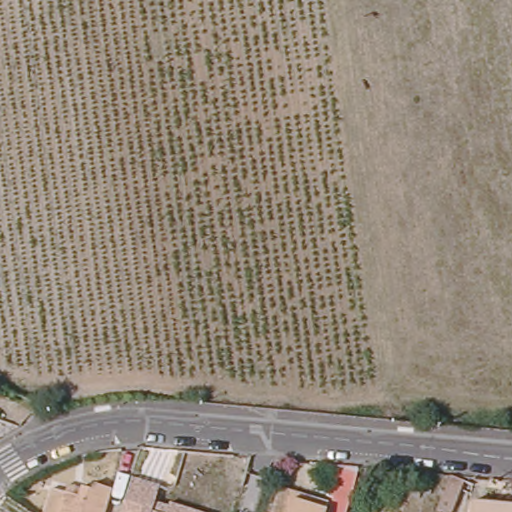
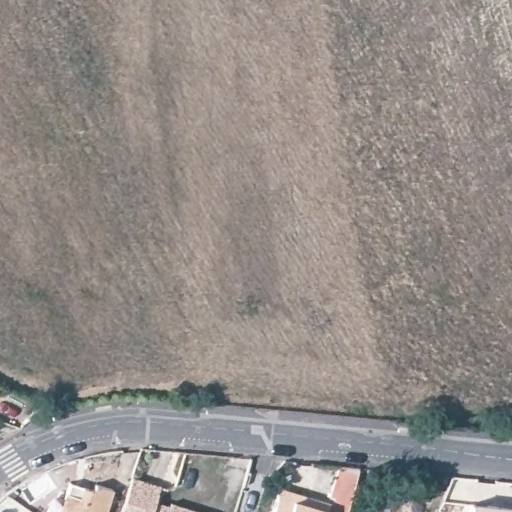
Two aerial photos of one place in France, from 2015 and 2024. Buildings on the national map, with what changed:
unchanged [(127,512),(140,474),(167,483),(162,499),(176,504),(177,500),(212,512),(127,512)]
unchanged [(473,489),(464,512),(439,512),(452,481),(473,489)]
unchanged [(303,489),(333,498),(331,506),(329,512),(277,512),(285,484),(303,489)]
unchanged [(75,495),(77,489),(85,491),(95,492),(98,485),(115,491),(109,512),(63,512),(69,493),(75,495)]
unchanged [(512,508),(512,512),(474,512),(474,505),(512,508)]

